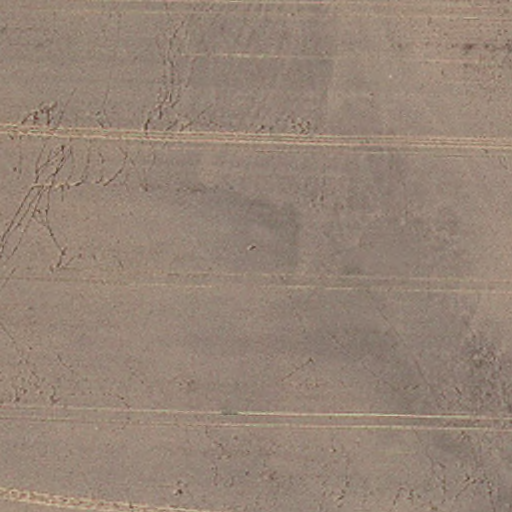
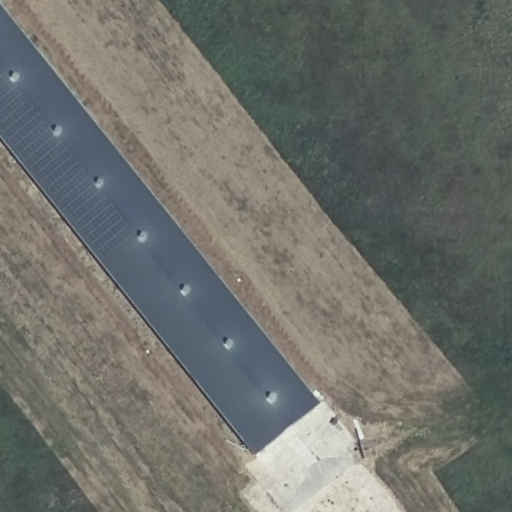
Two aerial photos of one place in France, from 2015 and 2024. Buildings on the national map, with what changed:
new [(252,449),(0,134),(0,11),(312,400),(252,449)]

